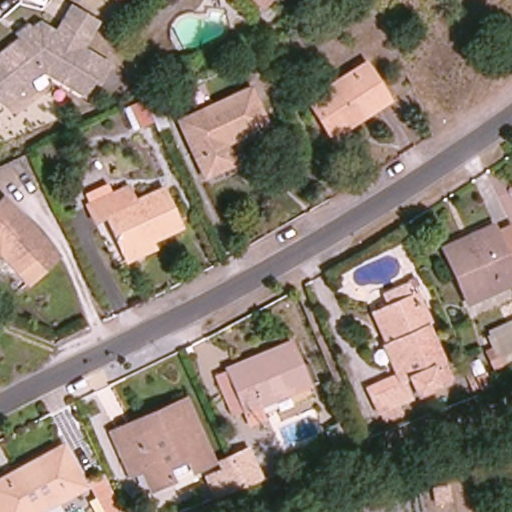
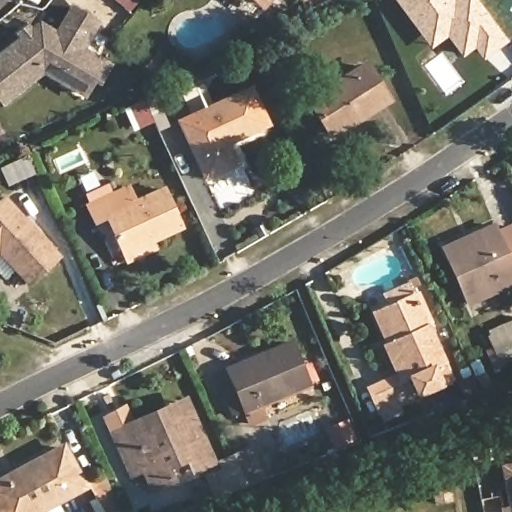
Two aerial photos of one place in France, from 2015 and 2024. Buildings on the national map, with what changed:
unchanged [(132,11),(120,0),(142,0),(132,11)]
unchanged [(256,0),(266,0),(261,5),(256,0)]
new [(508,41),(482,61),(473,49),(461,58),(445,37),(429,49),(394,0),(477,0),(508,41)]
unchanged [(16,41),(12,35),(23,26),(28,32),(35,26),(50,34),(62,14),(66,8),(92,24),(88,30),(77,50),(104,66),(95,81),(89,77),(79,95),(39,72),(0,102),(0,54),(16,41)]
unchanged [(366,64),(390,101),(332,138),(308,100),(366,64)]
unchanged [(268,120),(227,139),(236,158),(206,172),(180,117),(251,84),(268,120)]
unchanged [(135,130),(125,110),(144,101),(153,122),(135,130)]
unchanged [(108,216),(96,221),(89,206),(128,188),(135,203),(163,190),(181,228),(151,242),(126,254),(108,216)]
unchanged [(59,257),(30,284),(0,252),(0,201),(3,198),(59,257)]
unchanged [(494,226),(496,231),(511,225),(512,226),(512,285),(468,305),(443,250),(494,226)]
unchanged [(383,307),(412,294),(427,325),(425,326),(449,378),(376,413),(365,390),(395,375),(367,315),(383,307)]
unchanged [(488,333),(512,322),(512,363),(504,367),(488,333)]
unchanged [(227,370),(292,344),(310,387),(260,407),(265,419),(250,425),(245,412),(227,370)]
unchanged [(160,484),(151,465),(140,470),(126,439),(121,428),(187,398),(192,409),(215,459),(160,484)]
unchanged [(36,512),(0,512),(0,480),(62,446),(84,486),(36,512)]
unchanged [(223,457),(237,451),(252,446),(264,477),(251,482),(222,493),(214,473),(227,467),(223,457)]
unchanged [(512,469),(512,482),(509,469),(512,469)]
unchanged [(106,512),(90,484),(105,475),(120,512),(106,512)]
unchanged [(451,497),(436,500),(433,485),(448,483),(451,497)]
unchanged [(512,511),(512,512),(508,512),(512,511)]

